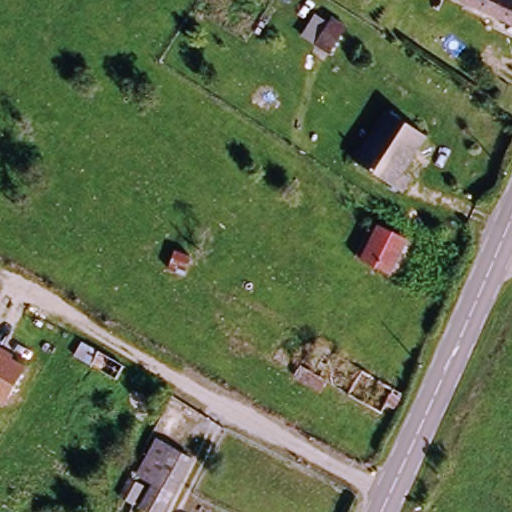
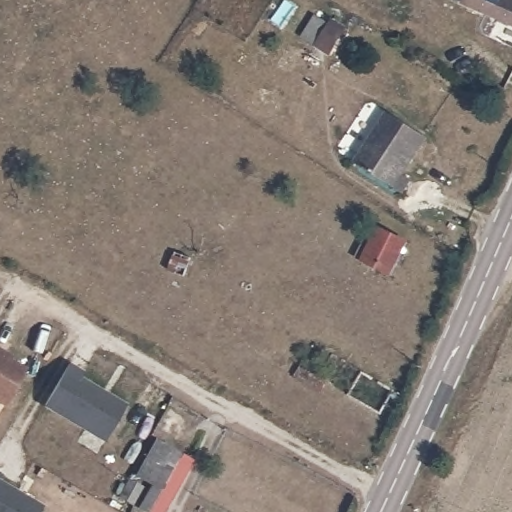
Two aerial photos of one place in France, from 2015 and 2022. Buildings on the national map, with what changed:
unchanged [(466,0),(501,0),(512,5),(512,23),(466,0)]
unchanged [(322,19),(336,27),(319,56),(305,47),(322,19)]
unchanged [(384,112),(425,136),(402,174),(412,179),(404,195),(352,166),(384,112)]
unchanged [(357,258),(374,226),(411,245),(396,277),(357,258)]
unchanged [(300,331),(391,383),(385,395),(376,389),(370,403),(315,369),(307,384),(280,368),(287,353),(300,331)]
unchanged [(11,358),(29,370),(6,407),(0,404),(0,345),(14,354),(11,358)]
new [(70,364),(84,372),(81,377),(126,403),(105,439),(46,405),(70,364)]
demolished [(130,372),(155,387),(147,401),(121,387),(130,372)]
unchanged [(158,494),(154,491),(149,487),(152,482),(172,450),(197,466),(167,512),(146,512),(158,494)]
new [(0,477),(0,471),(2,473),(0,477)]
new [(0,479),(45,505),(40,512),(0,512),(0,479)]
unchanged [(128,481),(142,491),(134,505),(120,496),(128,481)]

